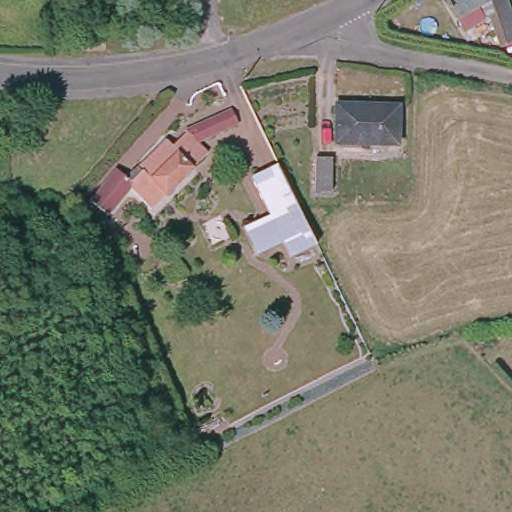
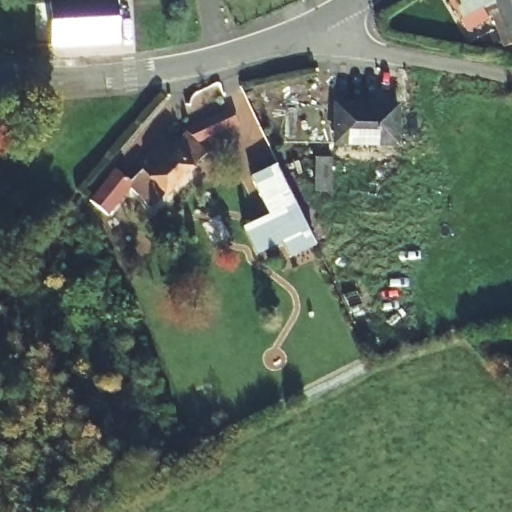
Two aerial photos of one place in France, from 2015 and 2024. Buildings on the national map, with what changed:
new [(83,47),(83,55),(65,56),(65,48),(52,49),(50,0),(117,0),(119,45),(83,47)]
unchanged [(504,0),(509,0),(512,8),(512,61),(496,19),(489,20),(491,26),(468,36),(447,0),(497,0),(498,2),(504,0)]
unchanged [(394,110),(392,149),(332,146),(333,107),(394,110)]
unchanged [(163,139),(169,145),(183,130),(230,109),(237,122),(195,142),(205,151),(150,209),(129,189),(107,215),(89,200),(114,170),(129,182),(140,171),(137,168),(163,139)]
unchanged [(331,157),(331,192),(316,192),(316,156),(331,157)]
unchanged [(273,167),(311,248),(286,260),(279,246),(253,259),(239,231),(265,217),(247,180),(273,167)]

